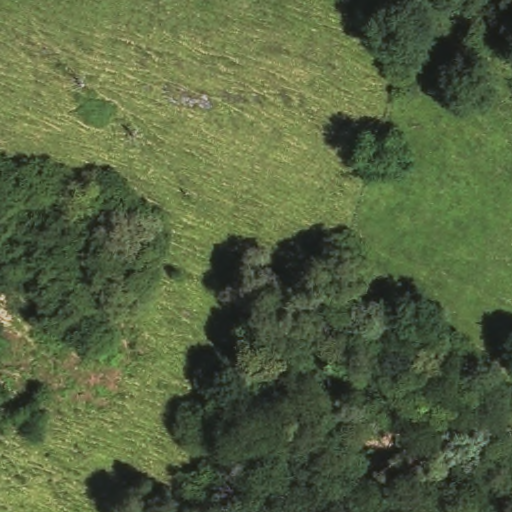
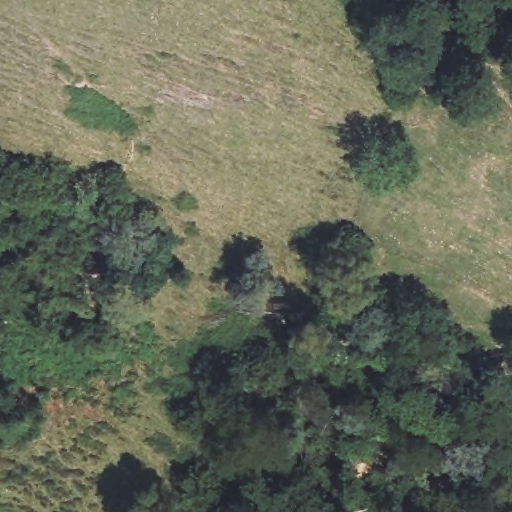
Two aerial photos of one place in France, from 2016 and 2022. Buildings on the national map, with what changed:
unchanged [(501,11),(504,0),(512,0),(512,14),(501,11)]

